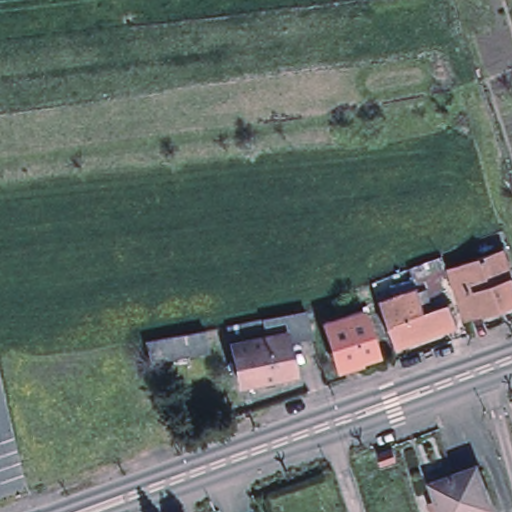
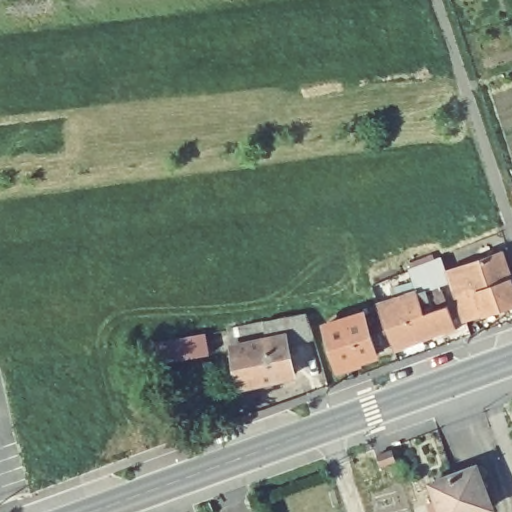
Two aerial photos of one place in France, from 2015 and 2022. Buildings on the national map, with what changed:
unchanged [(467,321),(450,271),(503,252),(512,278),(512,305),(485,315),(467,321)]
unchanged [(435,310),(449,306),(456,325),(395,350),(380,303),(396,299),(393,288),(415,280),(413,277),(410,268),(418,265),(421,273),(443,261),(447,272),(450,280),(419,291),(420,292),(422,302),(431,300),(435,310)]
unchanged [(379,356),(340,368),(326,326),(365,313),(379,356)]
unchanged [(295,378),(243,387),(230,329),(307,315),(315,338),(288,345),(295,378)]
unchanged [(205,333),(210,355),(154,367),(147,345),(205,333)]
unchanged [(391,463),(388,453),(402,448),(405,459),(391,463)]
unchanged [(442,496),(436,478),(482,462),(496,503),(473,512),(440,512),(435,499),(442,496)]

